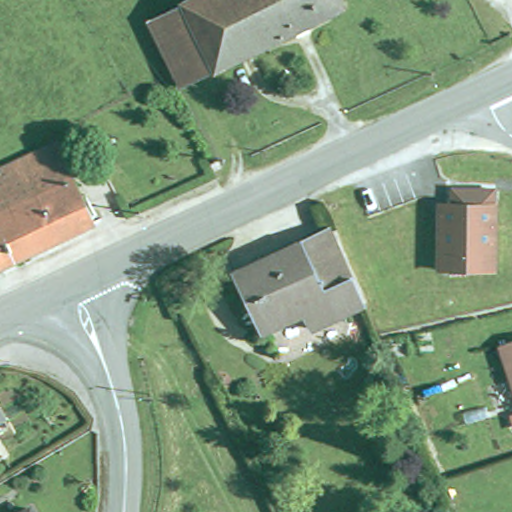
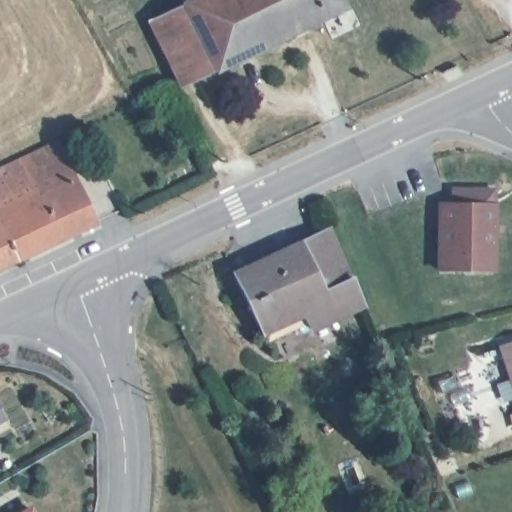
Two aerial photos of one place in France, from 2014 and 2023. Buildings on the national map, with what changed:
unchanged [(154,26),(207,0),(343,0),(350,14),(188,91),(181,77),(154,26)]
unchanged [(98,224),(21,260),(0,219),(0,177),(5,175),(3,170),(58,143),(98,224)]
unchanged [(444,282),(445,236),(451,236),(451,226),(446,226),(446,215),(458,216),(458,201),(499,202),(499,217),(499,283),(444,282)]
unchanged [(21,260),(0,270),(0,219),(21,260)]
unchanged [(369,307),(316,331),(309,316),(268,334),(237,273),(334,227),(369,307)]
unchanged [(512,342),(512,365),(506,344),(512,342)]

